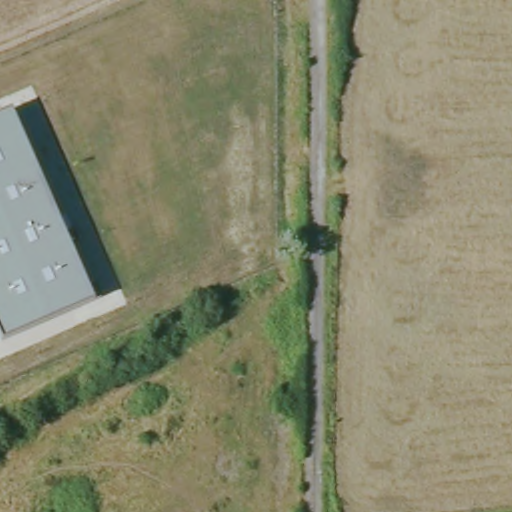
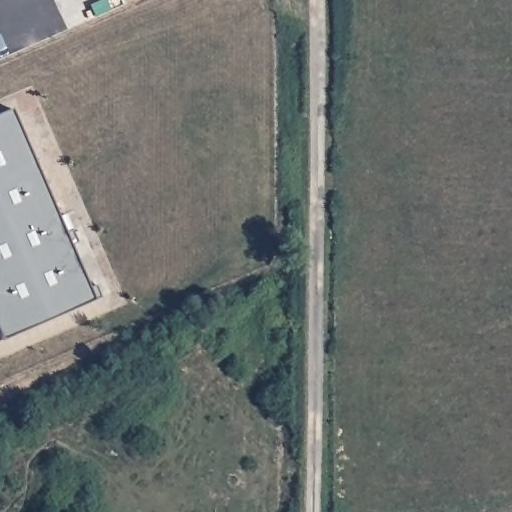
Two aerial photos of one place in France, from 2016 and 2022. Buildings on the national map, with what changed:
unchanged [(0,336),(0,335),(0,116),(8,112),(91,300),(0,336)]

